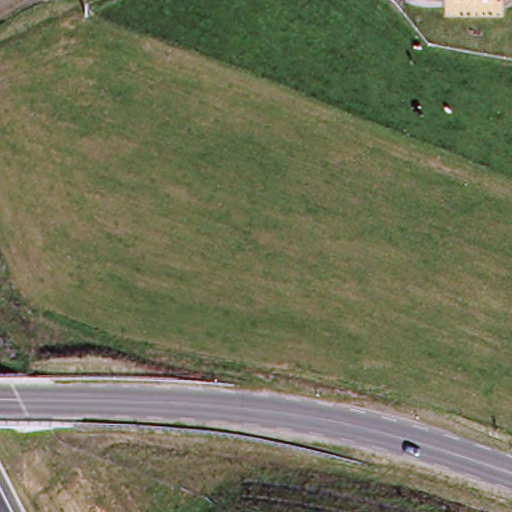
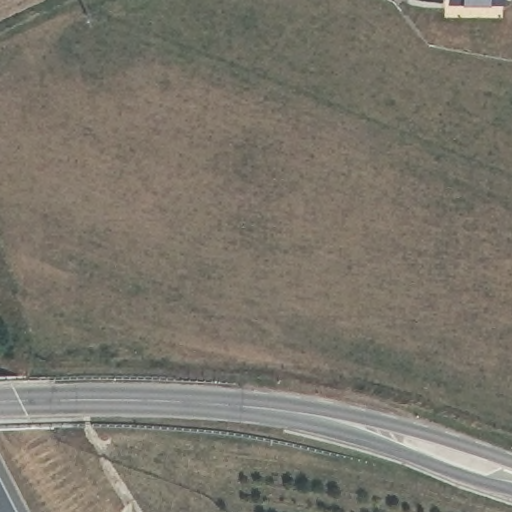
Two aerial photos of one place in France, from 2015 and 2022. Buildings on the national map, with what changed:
unchanged [(451,2),(452,0),(504,0),(503,4),(451,2)]

